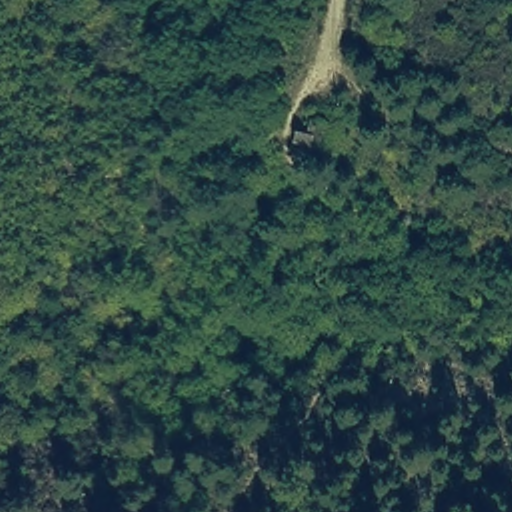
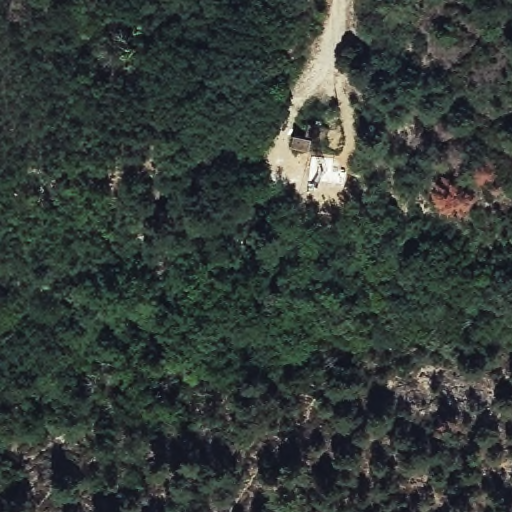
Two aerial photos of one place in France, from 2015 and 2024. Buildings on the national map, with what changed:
[]

